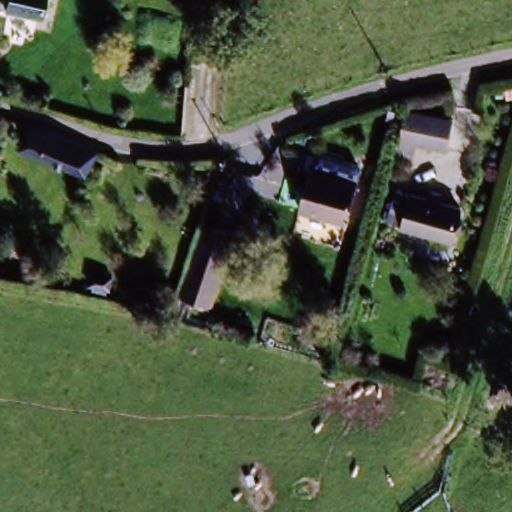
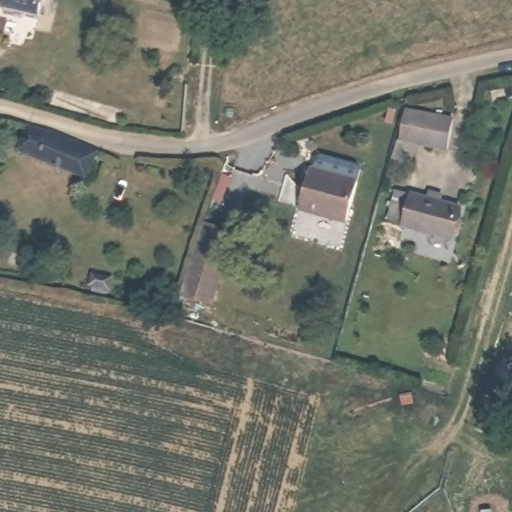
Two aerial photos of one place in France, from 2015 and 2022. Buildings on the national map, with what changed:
unchanged [(0,0),(47,0),(45,8),(0,0)]
unchanged [(456,120),(449,147),(394,132),(401,105),(456,120)]
unchanged [(33,155),(19,150),(31,130),(39,133),(95,153),(88,176),(33,155)]
unchanged [(307,170),(353,185),(342,223),(295,209),(307,170)]
unchanged [(401,194),(466,214),(458,245),(392,225),(401,194)]
unchanged [(175,294),(199,225),(230,236),(207,305),(175,294)]

